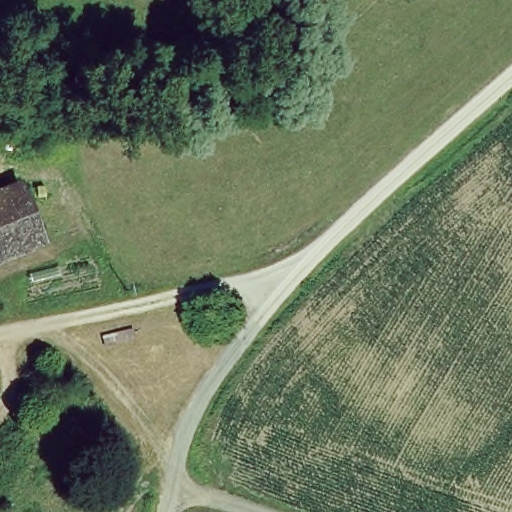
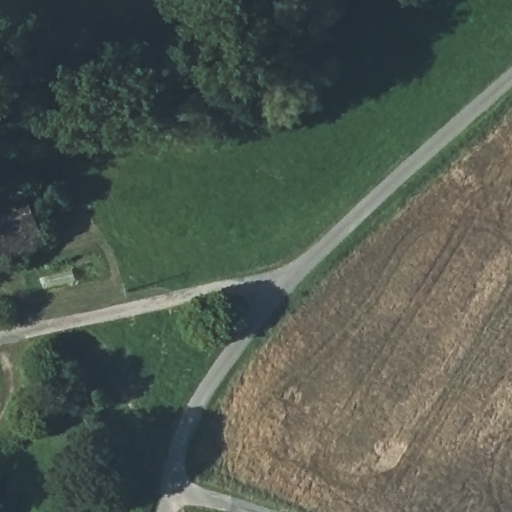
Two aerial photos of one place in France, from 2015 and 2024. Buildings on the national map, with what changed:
unchanged [(51,250),(0,269),(0,191),(23,184),(51,250)]

